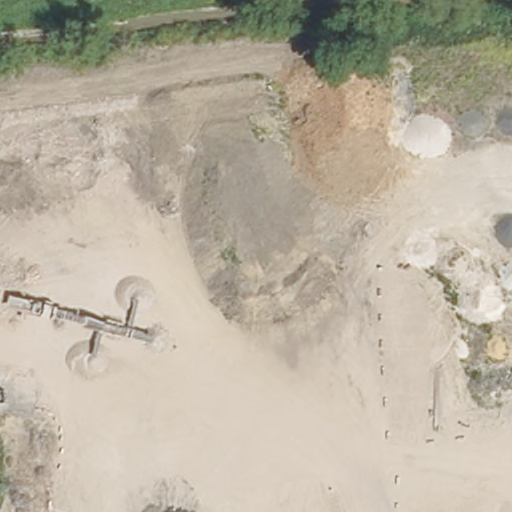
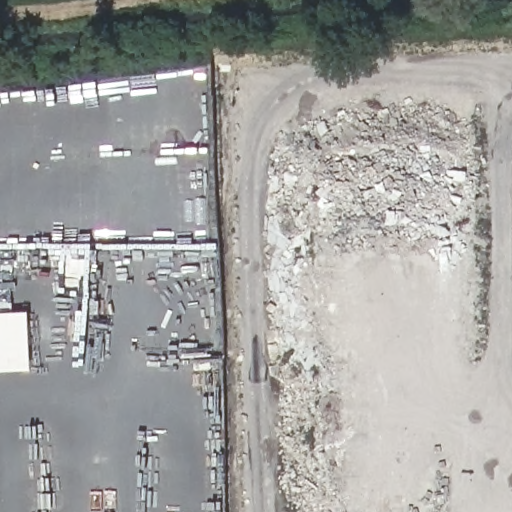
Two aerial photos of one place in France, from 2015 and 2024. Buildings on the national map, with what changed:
new [(0,372),(0,314),(29,313),(32,371),(0,372)]

